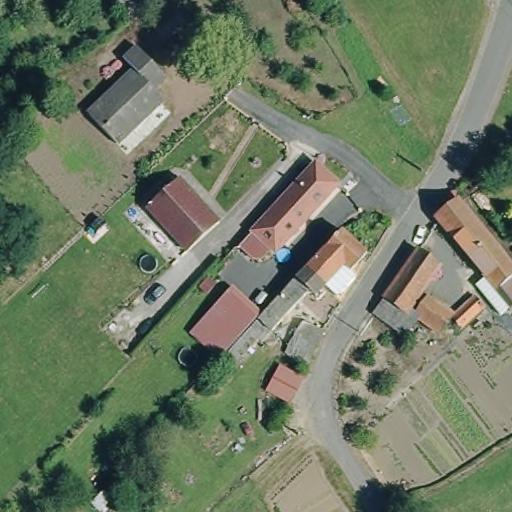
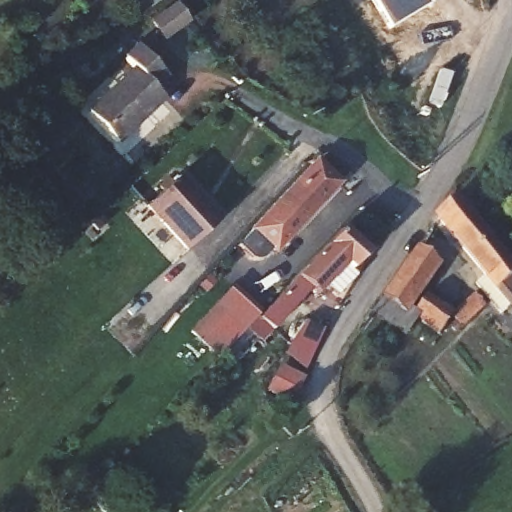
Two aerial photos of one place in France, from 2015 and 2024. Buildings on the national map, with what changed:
unchanged [(125,18),(115,0),(150,0),(128,15),(125,18)]
new [(391,30),(374,0),(427,0),(430,5),(391,30)]
unchanged [(123,55),(137,41),(165,70),(152,82),(161,91),(113,137),(87,110),(133,65),(123,55)]
unchanged [(340,180),(279,247),(255,224),(318,155),(340,180)]
unchanged [(177,178),(217,222),(186,250),(145,207),(177,178)]
unchanged [(509,307),(502,313),(477,282),(487,274),(438,214),(459,198),(512,261),(512,304),(511,305),(509,307)]
unchanged [(359,263),(345,279),(351,285),(332,306),(322,296),(311,307),(304,301),(298,308),(282,293),(332,239),(359,263)]
unchanged [(415,247),(442,266),(410,310),(407,314),(417,320),(407,333),(375,307),(382,296),(415,247)]
unchanged [(259,319),(220,362),(190,336),(231,292),(259,319)]
unchanged [(454,312),(475,292),(485,304),(467,320),(462,325),(456,318),(444,335),(427,322),(417,314),(431,295),(454,312)]
unchanged [(282,293),(298,308),(267,342),(258,335),(216,379),(209,373),(220,362),(259,319),(282,293)]
unchanged [(297,316),(318,325),(304,362),(278,355),(297,316)]

